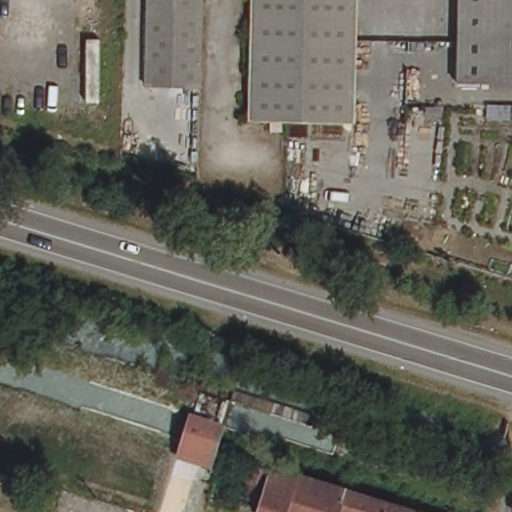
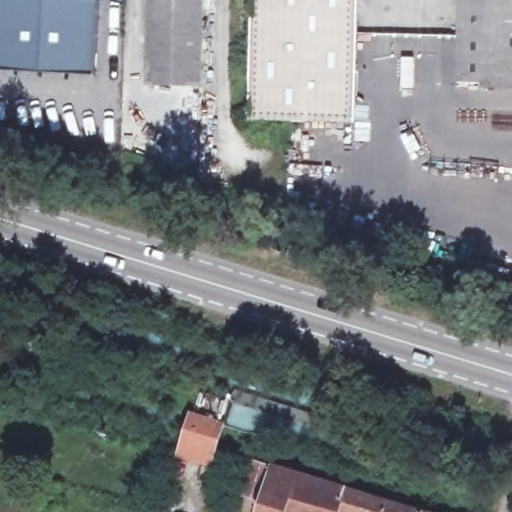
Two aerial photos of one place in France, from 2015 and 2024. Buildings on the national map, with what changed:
new [(100,0),(98,74),(0,69),(0,0),(100,0)]
unchanged [(145,85),(146,0),(200,0),(200,87),(145,85)]
unchanged [(247,115),(249,0),(357,0),(356,140),(331,140),(308,141),(308,115),(247,115)]
unchanged [(459,0),(512,0),(512,90),(458,90),(459,0)]
unchanged [(217,450),(212,466),(183,457),(186,447),(194,420),(223,428),(217,450)]
unchanged [(268,501),(247,493),(257,457),(336,482),(436,512),(264,512),(268,501)]

